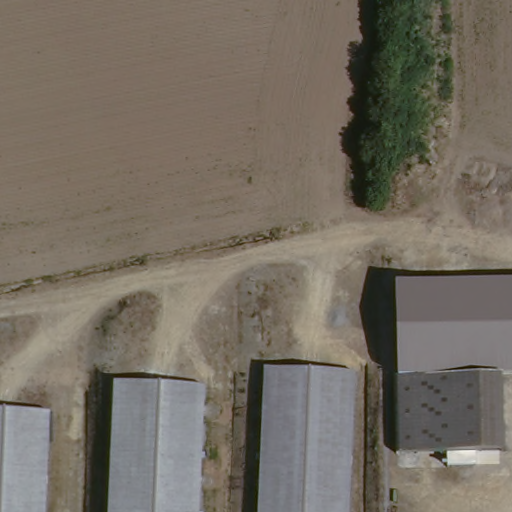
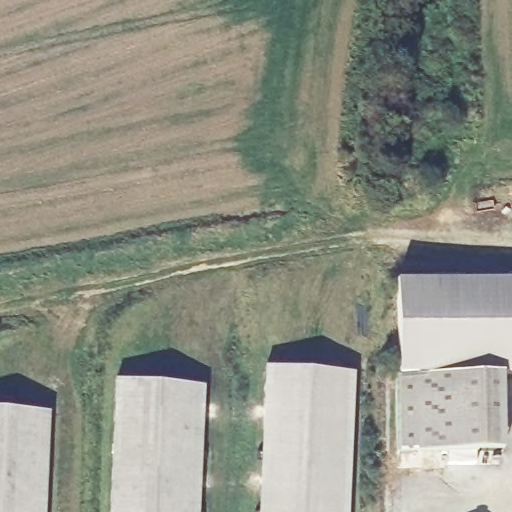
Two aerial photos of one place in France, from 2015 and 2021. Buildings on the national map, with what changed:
unchanged [(394,284),(512,279),(512,374),(506,375),(505,368),(405,376),(396,377),(394,284)]
unchanged [(505,368),(512,448),(410,454),(405,376),(505,368)]
unchanged [(352,375),(346,512),(257,512),(263,370),(352,375)]
unchanged [(204,388),(199,512),(113,512),(120,378),(204,388)]
unchanged [(57,430),(53,512),(0,512),(0,426),(57,430)]

